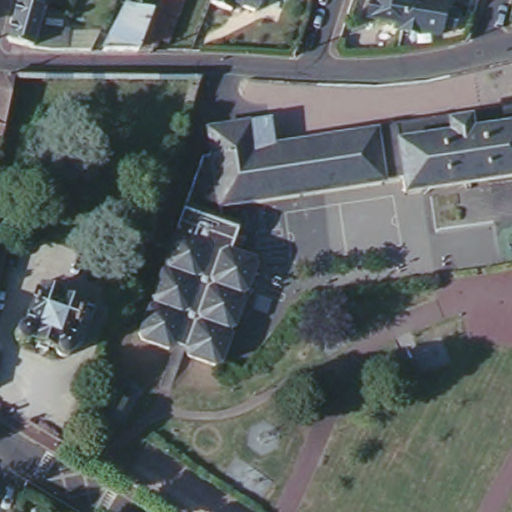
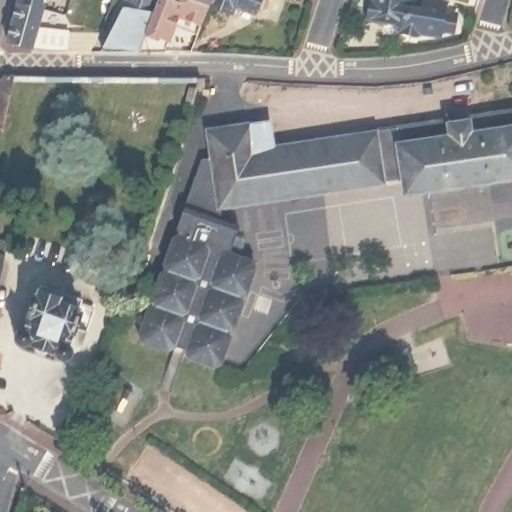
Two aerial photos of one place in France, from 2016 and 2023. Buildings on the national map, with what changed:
unchanged [(53,50),(38,47),(10,41),(6,36),(16,1),(17,0),(45,0),(43,8),(37,26),(65,30),(65,50),(53,50)]
unchanged [(102,55),(128,0),(161,0),(139,56),(137,56),(102,55)]
unchanged [(161,0),(184,0),(166,47),(159,44),(154,56),(139,56),(161,0)]
unchanged [(259,0),(255,9),(235,2),(233,11),(209,3),(210,0),(259,0)]
unchanged [(401,31),(395,30),(396,23),(366,18),(368,0),(371,0),(407,0),(406,6),(401,31)]
unchanged [(401,31),(406,6),(415,8),(417,1),(423,3),(424,0),(444,4),(443,12),(455,15),(452,33),(440,31),(439,36),(418,33),(418,35),(401,32),(401,31)]
unchanged [(0,135),(0,80),(4,76),(12,76),(0,135)]
unchanged [(231,248),(229,254),(251,261),(255,269),(246,296),(241,299),(243,307),(232,309),(161,277),(162,275),(168,272),(165,266),(175,238),(180,236),(180,234),(178,230),(203,161),(213,161),(209,133),(250,128),(255,154),(375,136),(375,131),(440,123),(512,112),(512,180),(405,197),(401,183),(285,201),(220,211),(222,221),(231,224),(237,232),(236,235),(246,238),(241,251),(231,248)]
unchanged [(1,223),(0,230),(0,222),(1,223)]
unchanged [(6,260),(0,288),(0,258),(6,260)]
unchanged [(232,309),(243,307),(235,330),(230,335),(232,339),(224,364),(216,367),(188,358),(185,350),(175,347),(169,352),(142,343),(139,337),(150,308),(156,306),(153,299),(161,277),(232,309)]
unchanged [(59,298),(58,302),(80,309),(68,343),(70,345),(72,348),(72,351),(71,353),(70,355),(69,357),(67,358),(65,358),(62,358),(59,357),(57,355),(55,351),(55,349),(29,339),(27,342),(23,344),(19,343),(15,341),(13,337),(13,332),(16,329),(19,327),(22,326),(35,289),(59,298)]
unchanged [(192,440),(192,437),(194,434),(197,430),(201,428),(204,427),(208,428),(212,430),(215,433),(216,437),(217,442),(215,446),(212,449),(208,451),(204,451),(200,450),(196,448),(193,442),(192,440)]

